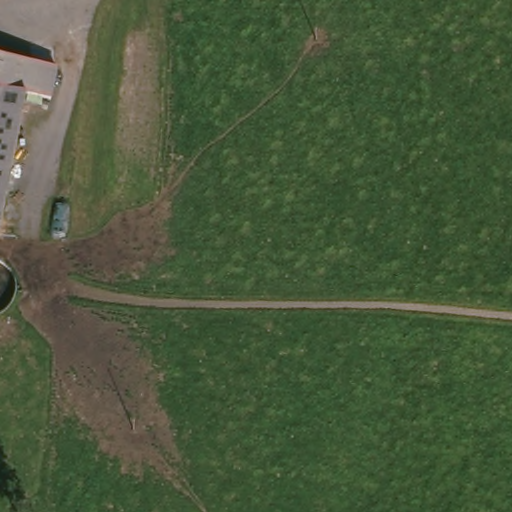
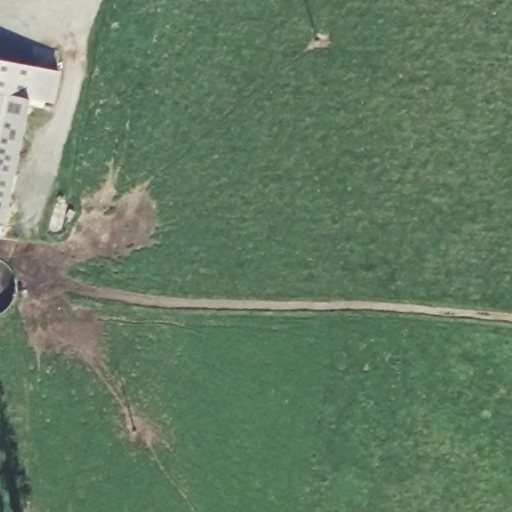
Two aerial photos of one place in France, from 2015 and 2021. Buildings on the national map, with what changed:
unchanged [(55,66),(48,97),(41,96),(26,93),(0,226),(0,55),(55,66)]

